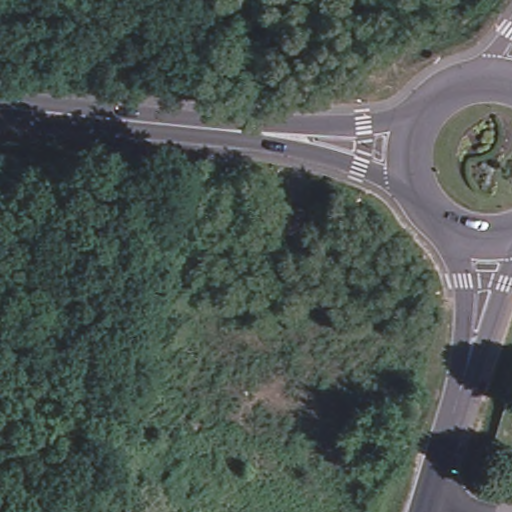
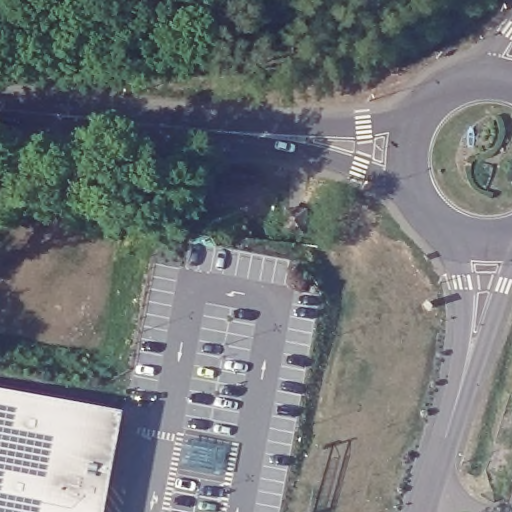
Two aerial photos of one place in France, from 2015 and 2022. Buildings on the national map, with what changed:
unchanged [(282,237),(284,215),(304,217),(302,239),(282,237)]
new [(120,416),(103,512),(0,512),(0,394),(120,416)]

